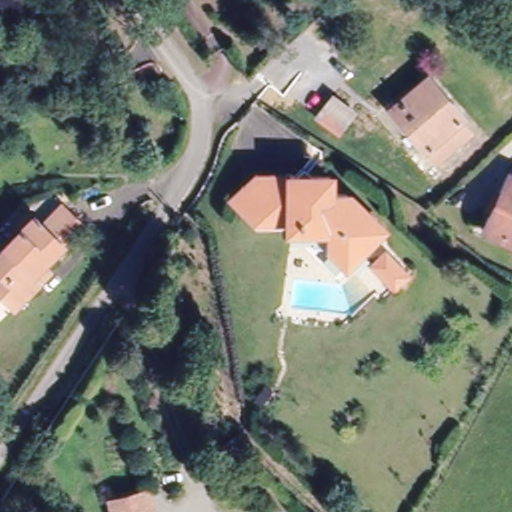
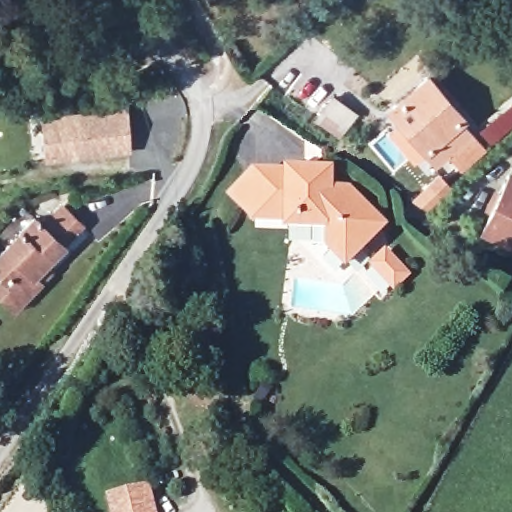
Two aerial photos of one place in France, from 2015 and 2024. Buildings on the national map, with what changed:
unchanged [(461,120),(473,134),(439,164),(390,107),(428,74),(466,116),(461,120)]
new [(40,112),(126,105),(130,152),(44,158),(40,112)]
unchanged [(347,259),(329,240),(330,224),(313,224),(291,224),(291,214),(257,214),(235,192),(257,169),(293,170),(302,161),(310,170),(330,171),(330,186),(348,186),(367,205),(385,222),(366,240),(347,259)]
unchanged [(510,171),(512,172),(512,243),(482,229),(510,171)]
unchanged [(23,297),(5,280),(15,268),(1,254),(42,211),(50,218),(69,199),(89,217),(50,258),(55,263),(46,273),(23,297)]
unchanged [(408,274),(396,285),(392,282),(375,264),(387,252),(405,270),(408,274)]
unchanged [(110,503),(145,495),(149,512),(113,512),(110,503)]

